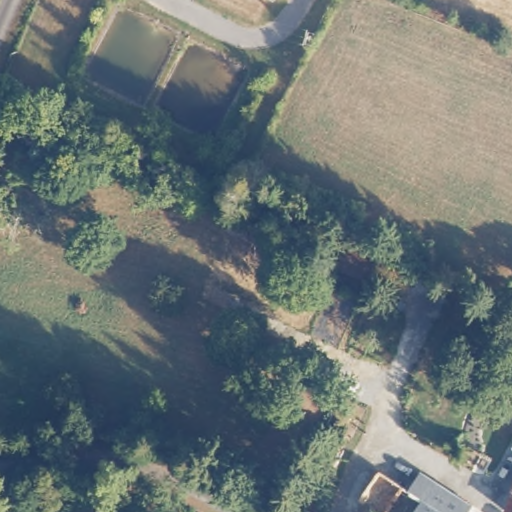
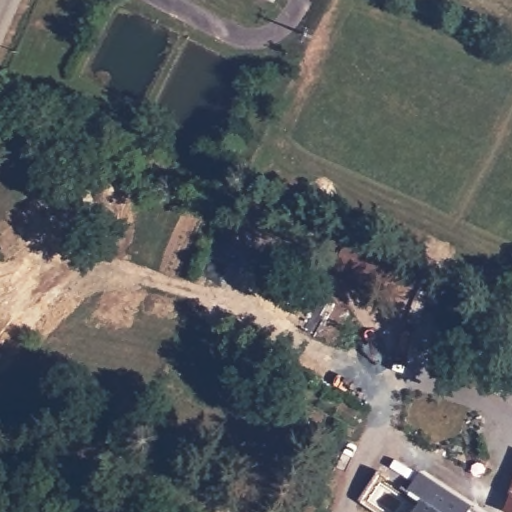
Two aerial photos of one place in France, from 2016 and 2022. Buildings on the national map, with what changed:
unchanged [(392,291),(351,273),(362,249),(405,267),(392,291)]
unchanged [(441,490),(432,504),(421,498),(412,512),(380,512),(379,511),(358,497),(377,468),(399,482),(415,493),(430,482),(441,490)]
unchanged [(506,509),(512,488),(512,511),(506,509)]
unchanged [(465,512),(412,512),(421,498),(432,504),(441,490),(468,508),(465,512)]

